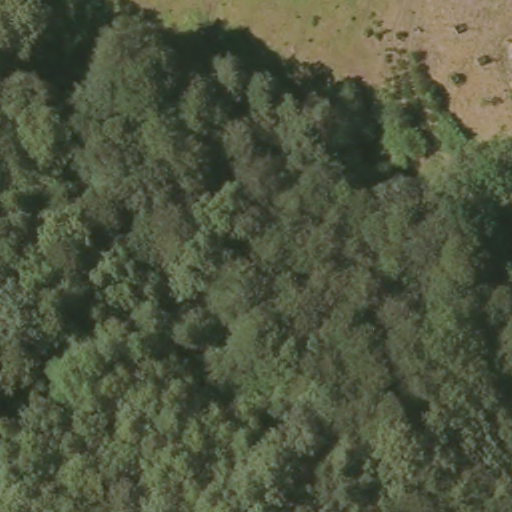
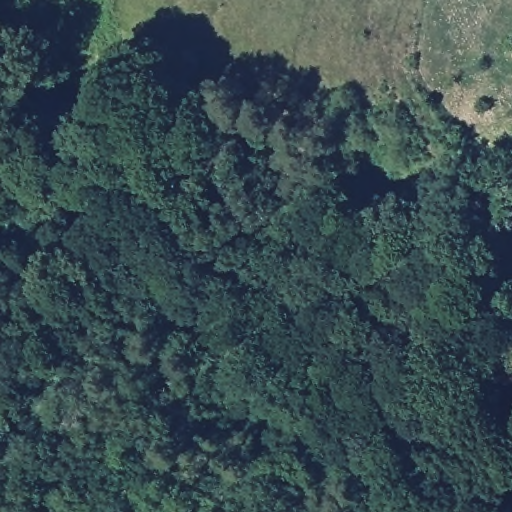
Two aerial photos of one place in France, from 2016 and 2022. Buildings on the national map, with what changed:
[]

